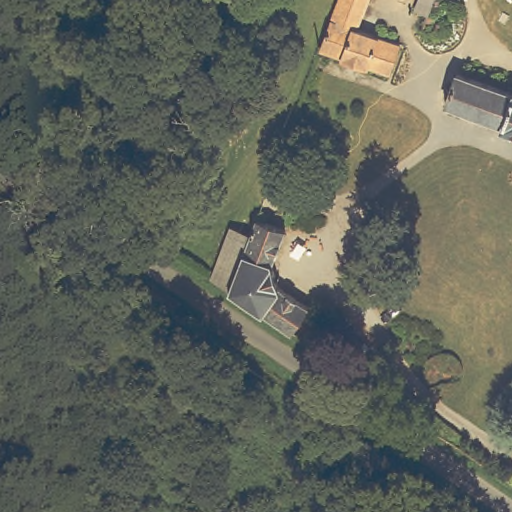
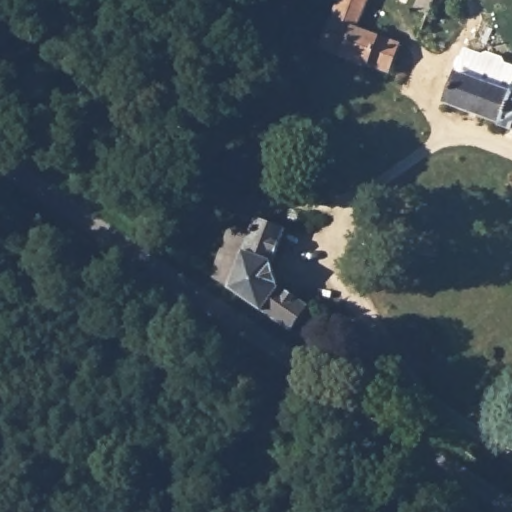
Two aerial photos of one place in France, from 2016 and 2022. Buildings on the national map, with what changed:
unchanged [(355,19),(400,38),(386,72),(319,46),(337,0),(363,0),(355,19)]
unchanged [(452,103),(468,66),(512,84),(512,124),(452,103)]
unchanged [(254,213),(284,228),(265,271),(304,300),(287,322),(226,281),(248,230),(254,213)]
unchanged [(208,268),(229,222),(248,230),(226,281),(208,268)]

